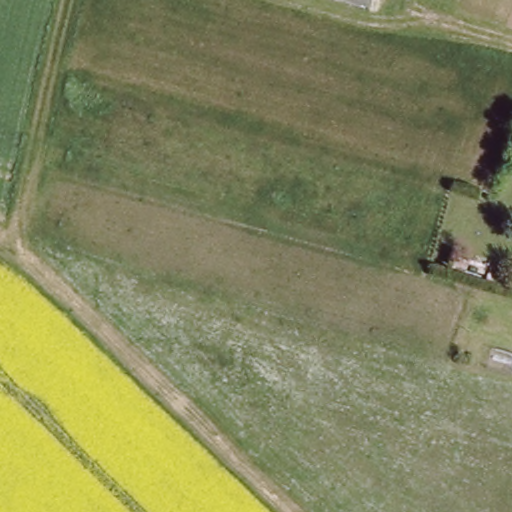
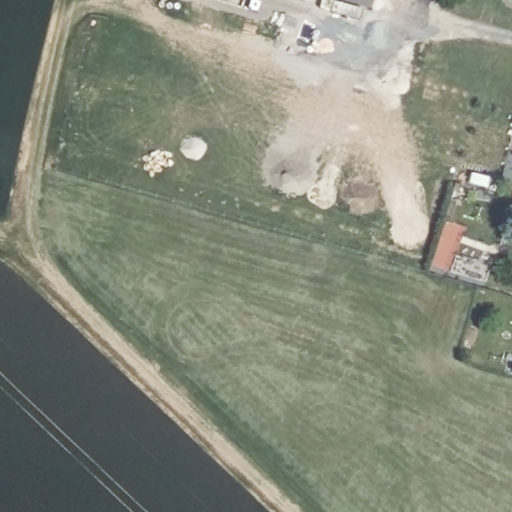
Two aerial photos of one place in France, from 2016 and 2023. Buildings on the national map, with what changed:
unchanged [(373,5),(355,0),(374,0),(373,5)]

